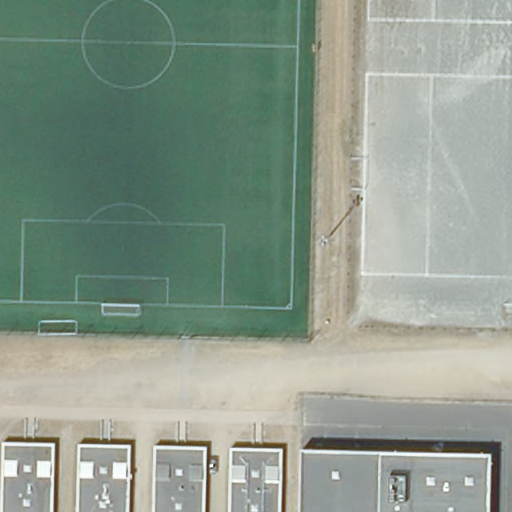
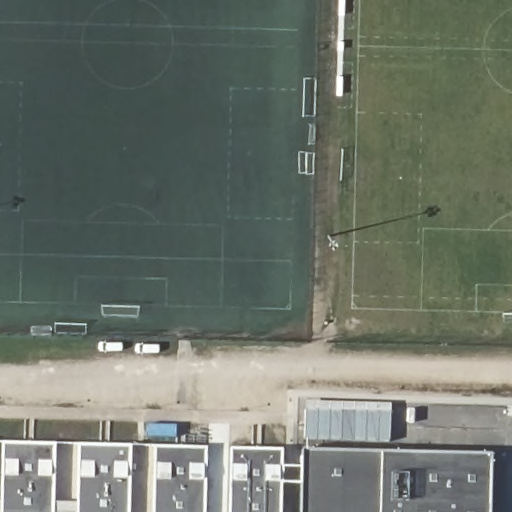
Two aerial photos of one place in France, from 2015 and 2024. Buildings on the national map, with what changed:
new [(391,403),(390,441),(306,440),(306,402),(391,403)]
unchanged [(0,481),(2,443),(56,445),(53,512),(0,512),(0,481)]
unchanged [(85,446),(132,447),(131,512),(82,512),(85,446)]
unchanged [(159,448),(207,450),(204,512),(156,512),(159,448)]
unchanged [(384,452),(381,512),(301,512),(304,448),(384,452)]
unchanged [(232,450),(278,452),(276,512),(229,512),(232,450)]
unchanged [(492,455),(489,512),(381,512),(384,452),(492,455)]

